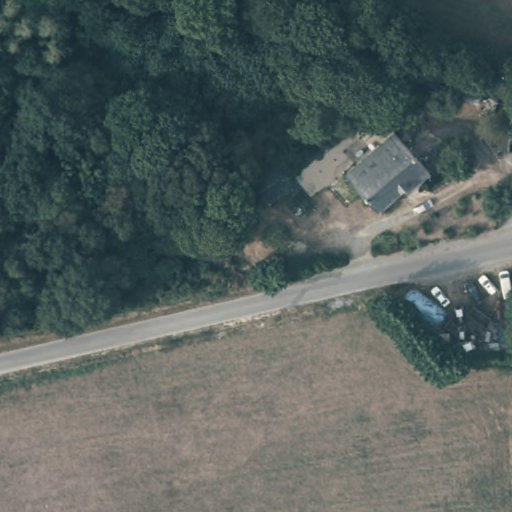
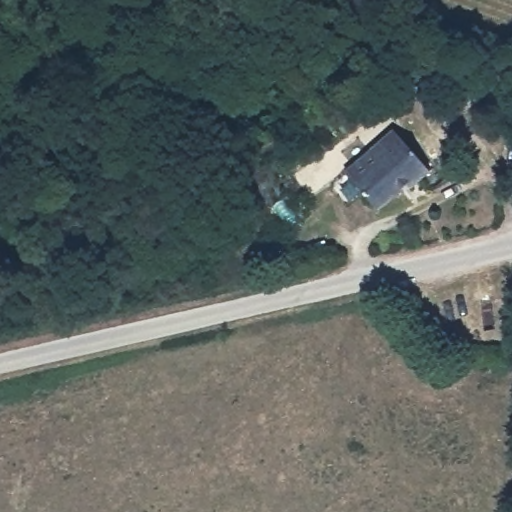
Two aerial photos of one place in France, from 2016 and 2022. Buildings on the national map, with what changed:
unchanged [(413,188),(412,185),(382,211),(349,174),(397,130),(433,170),(413,188)]

